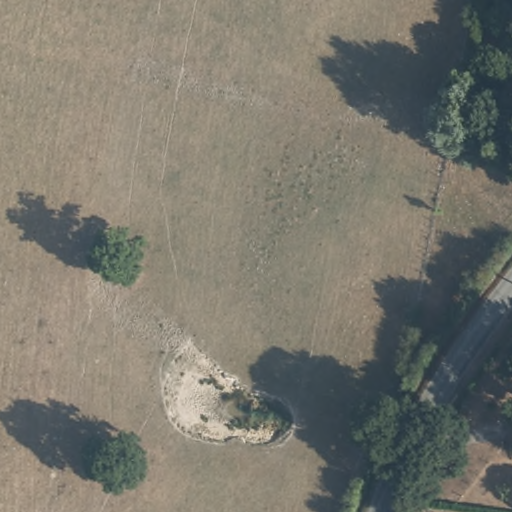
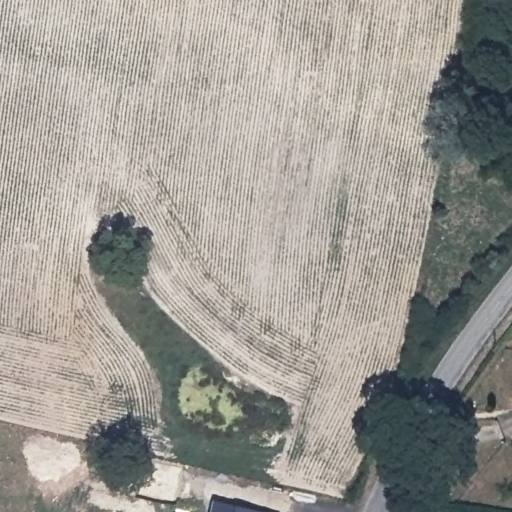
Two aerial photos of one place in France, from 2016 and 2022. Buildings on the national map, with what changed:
new [(251,512),(212,512),(215,503),(251,512)]

